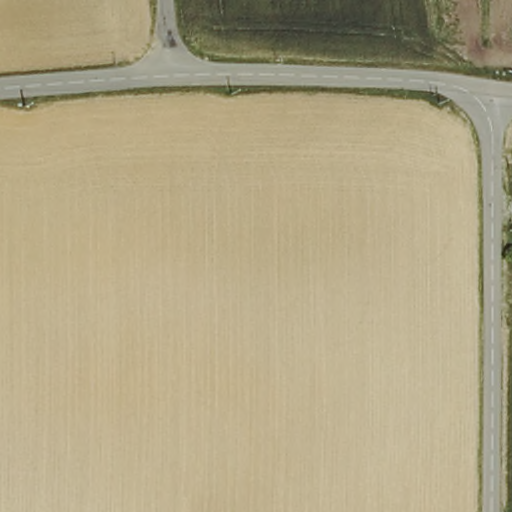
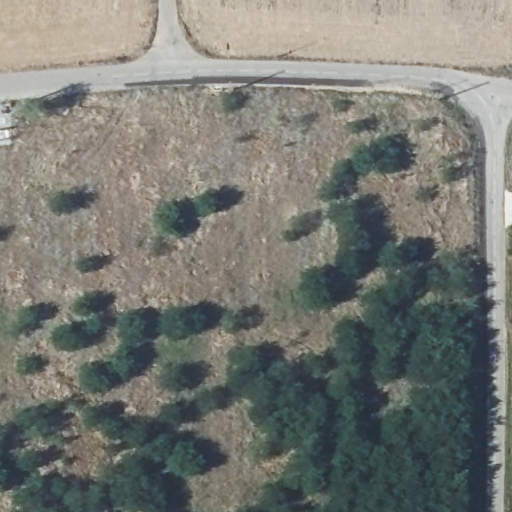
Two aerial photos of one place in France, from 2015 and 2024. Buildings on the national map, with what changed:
[]

